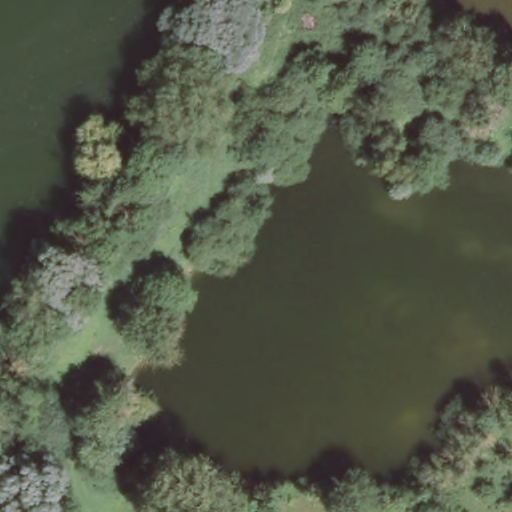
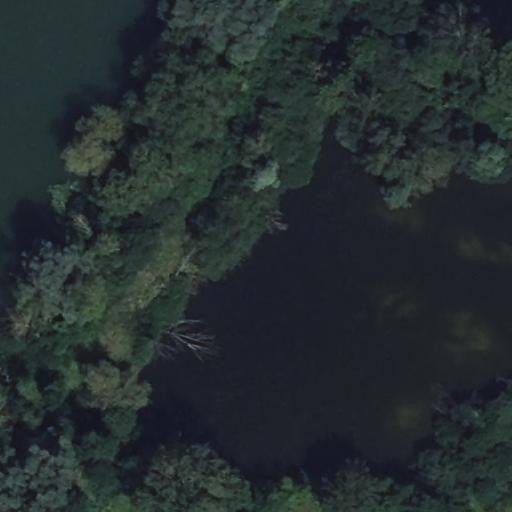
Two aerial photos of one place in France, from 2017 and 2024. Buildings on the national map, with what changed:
unchanged [(400,91),(421,101),(411,120),(392,107),(400,91)]

